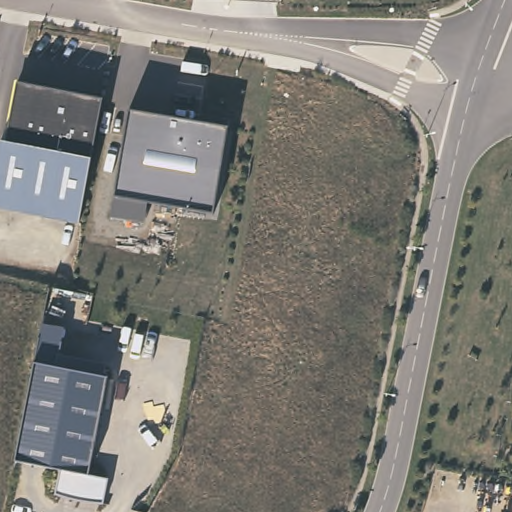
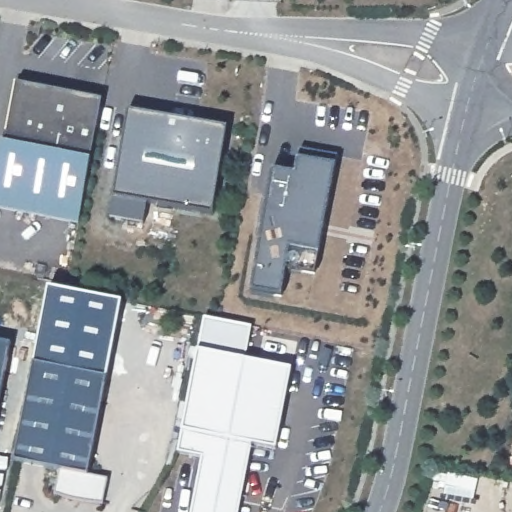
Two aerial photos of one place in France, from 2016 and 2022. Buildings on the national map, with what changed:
unchanged [(78,223),(0,207),(0,143),(5,144),(17,84),(69,94),(102,100),(100,116),(78,223)]
unchanged [(228,128),(216,199),(213,215),(147,204),(145,223),(110,217),(125,134),(128,111),(228,128)]
new [(319,250),(315,273),(285,269),(281,295),(252,288),(273,169),(295,172),(298,156),(300,147),(336,154),(335,164),(319,250)]
new [(249,442),(237,512),(192,512),(202,457),(180,452),(184,431),(197,350),(204,318),(251,327),(245,359),(292,369),(276,447),(249,442)]
unchanged [(40,330),(41,326),(65,330),(62,342),(57,368),(107,377),(89,475),(109,478),(103,504),(96,504),(86,502),(75,501),(65,498),(55,495),(60,471),(15,462),(39,338),(40,330)]

